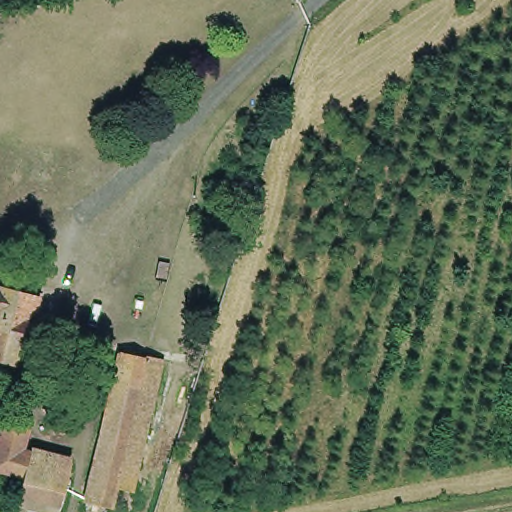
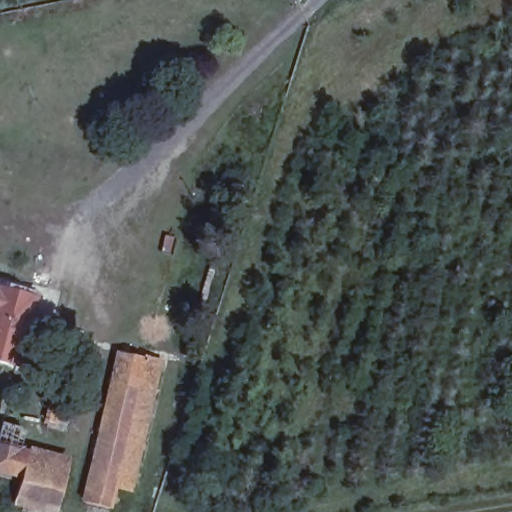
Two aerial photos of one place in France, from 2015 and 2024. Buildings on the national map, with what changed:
unchanged [(36,295),(17,362),(0,357),(0,286),(36,295)]
unchanged [(126,431),(100,424),(119,350),(143,356),(126,431)]
unchanged [(144,351),(160,356),(132,484),(115,480),(126,431),(143,356),(144,351)]
unchanged [(63,406),(57,433),(45,430),(53,402),(63,406)]
unchanged [(65,467),(53,512),(41,512),(11,504),(18,478),(0,474),(0,423),(13,427),(6,455),(23,459),(24,457),(65,467)]
unchanged [(115,480),(110,499),(84,493),(100,424),(126,431),(115,480)]

